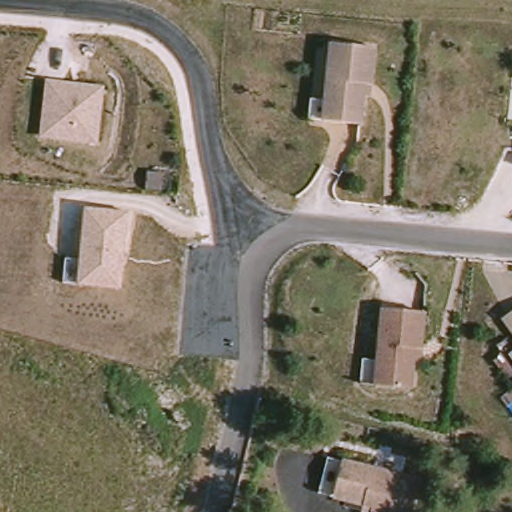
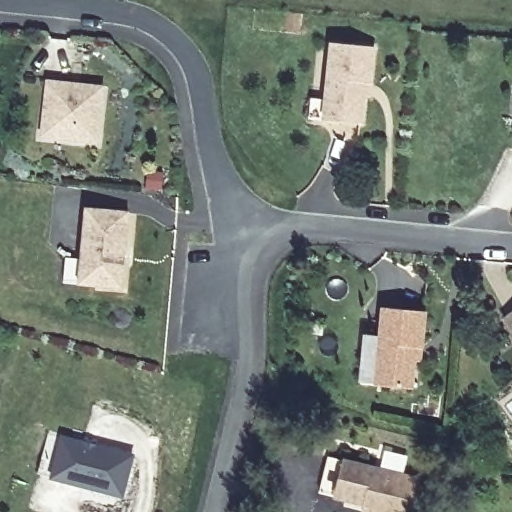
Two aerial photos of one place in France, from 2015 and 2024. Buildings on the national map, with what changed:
unchanged [(313,95),(328,96),(334,39),(375,43),(372,80),(370,92),(365,92),(362,120),(326,116),(311,115),(313,95)]
unchanged [(46,77),(106,84),(100,143),(40,139),(46,77)]
unchanged [(131,211),(123,289),(62,282),(64,258),(80,260),(86,207),(131,211)]
unchanged [(415,361),(413,389),(378,386),(385,308),(426,312),(423,349),(421,362),(415,361)]
unchanged [(499,319),(512,309),(512,337),(499,319)]
new [(50,480),(51,472),(40,470),(49,435),(61,435),(135,454),(124,500),(50,480)]
unchanged [(369,508),(339,501),(325,497),(334,461),(348,465),(426,485),(419,512),(368,512),(369,508)]

